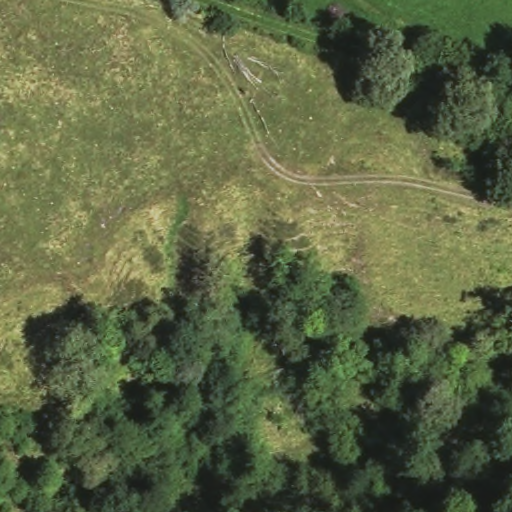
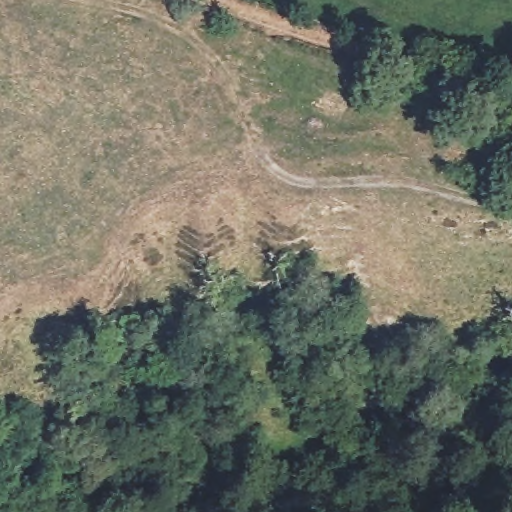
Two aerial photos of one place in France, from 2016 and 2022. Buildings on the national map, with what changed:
unchanged [(356,100),(346,115),(329,106),(318,99),(327,83),(356,100)]

